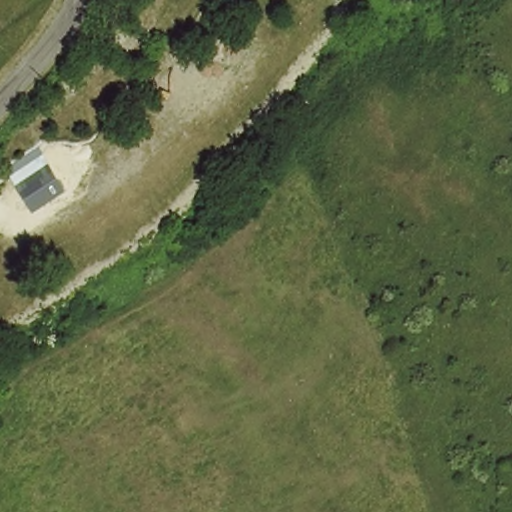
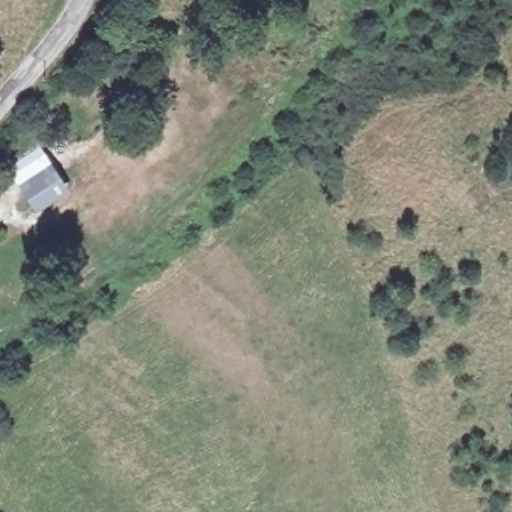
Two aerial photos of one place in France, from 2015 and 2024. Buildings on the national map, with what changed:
unchanged [(71,182),(37,206),(15,174),(46,148),(71,182)]

